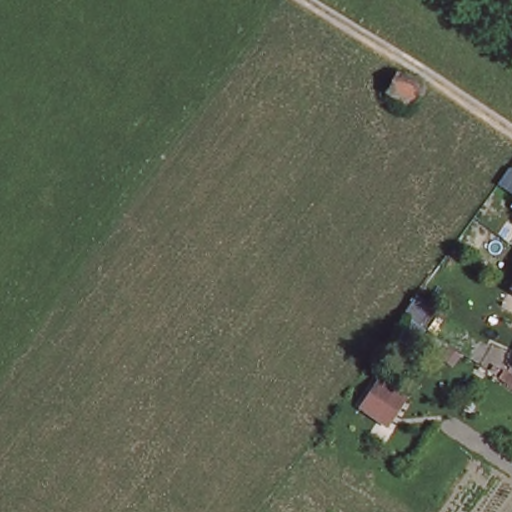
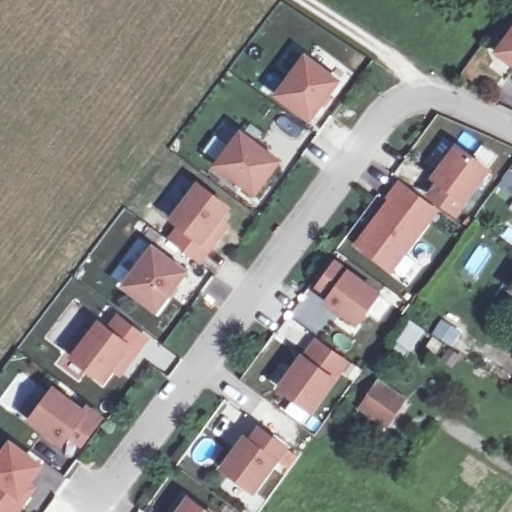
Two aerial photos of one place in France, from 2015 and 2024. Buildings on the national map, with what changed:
new [(512,3),(512,60),(485,40),(512,3)]
new [(299,44),(330,68),(301,106),(269,81),(299,44)]
demolished [(375,99),(393,71),(420,88),(407,116),(375,99)]
new [(283,160),(257,198),(214,166),(239,128),(283,160)]
new [(434,181),(429,178),(455,143),(492,169),(467,204),(459,218),(426,196),(434,181)]
new [(512,166),(512,194),(497,184),(507,163),(512,166)]
new [(425,199),(380,258),(347,233),(381,187),(378,185),(389,172),(425,199)]
new [(230,207),(221,219),(230,227),(201,263),(167,238),(174,224),(167,217),(197,180),(230,207)]
new [(188,272),(157,314),(119,286),(150,243),(188,272)]
new [(335,260),(349,269),(382,294),(357,329),(322,303),(327,298),(315,289),(335,260)]
unchanged [(512,290),(512,292),(511,291),(512,290)]
new [(407,319),(400,314),(415,291),(437,307),(422,328),(427,332),(410,354),(393,342),(407,319)]
new [(111,367),(102,380),(72,357),(100,322),(108,329),(118,317),(146,339),(126,365),(119,374),(111,367)]
new [(299,352),(313,337),(350,362),(337,379),(312,416),(275,390),(299,352)]
unchanged [(500,364),(512,372),(512,388),(493,376),(500,364)]
unchanged [(407,394),(387,424),(357,404),(377,373),(407,394)]
new [(84,407),(88,402),(104,414),(82,449),(66,440),(60,448),(25,422),(52,384),(84,407)]
new [(242,433),(245,435),(257,423),(288,446),(277,460),(255,495),(217,471),(242,433)]
new [(45,464),(30,483),(37,487),(19,512),(0,512),(0,454),(11,440),(45,464)]
new [(187,496),(209,512),(174,512),(187,496)]

